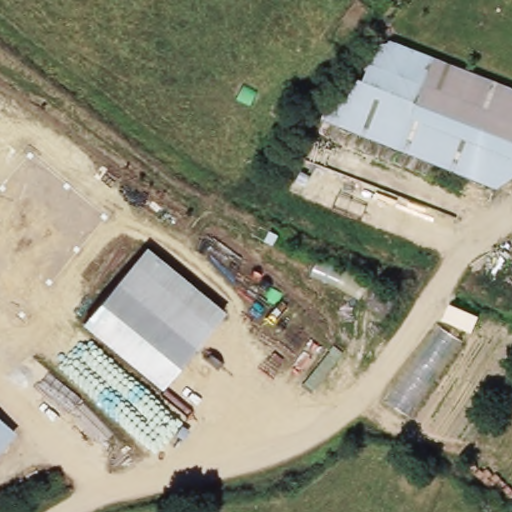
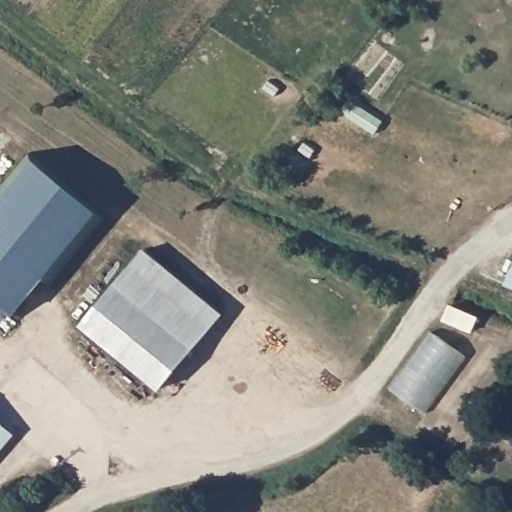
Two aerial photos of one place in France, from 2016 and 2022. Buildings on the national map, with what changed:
demolished [(340,71),(363,79),(380,36),(512,88),(512,179),(496,189),(320,119),(340,71)]
new [(31,152),(110,215),(25,319),(0,298),(0,192),(31,152)]
unchanged [(147,245),(229,310),(162,393),(80,324),(147,245)]
unchanged [(16,436),(0,456),(0,421),(16,436)]

